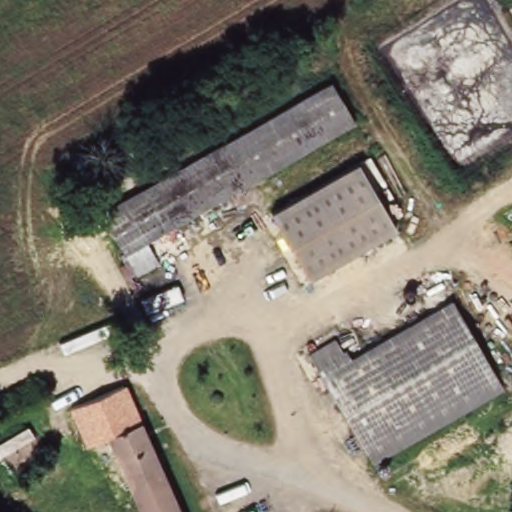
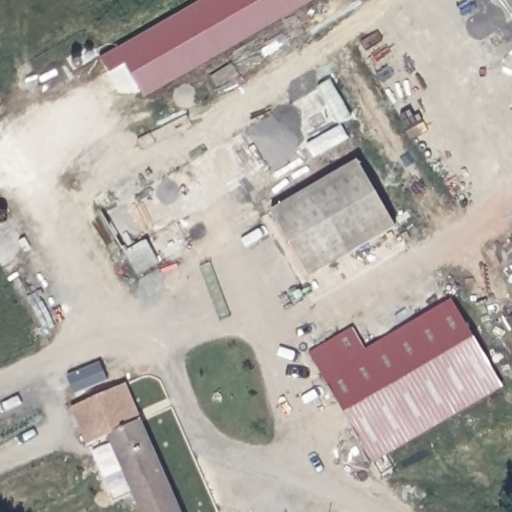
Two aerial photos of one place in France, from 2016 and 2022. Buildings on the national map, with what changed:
new [(141,93),(123,62),(108,71),(99,56),(115,47),(117,51),(206,0),(308,0),(143,96),(141,93)]
new [(206,0),(117,51),(115,47),(196,0),(206,0)]
unchanged [(332,86),(354,125),(150,238),(162,260),(136,274),(102,213),(332,86)]
unchanged [(363,163),(399,229),(311,277),(275,212),(363,163)]
unchanged [(342,344),(354,365),(456,306),(506,391),(379,466),(329,381),(316,359),(342,344)]
new [(87,446),(71,408),(126,384),(139,415),(136,417),(132,407),(102,421),(108,434),(87,446)]
unchanged [(179,512),(143,512),(102,421),(132,407),(179,512)]

